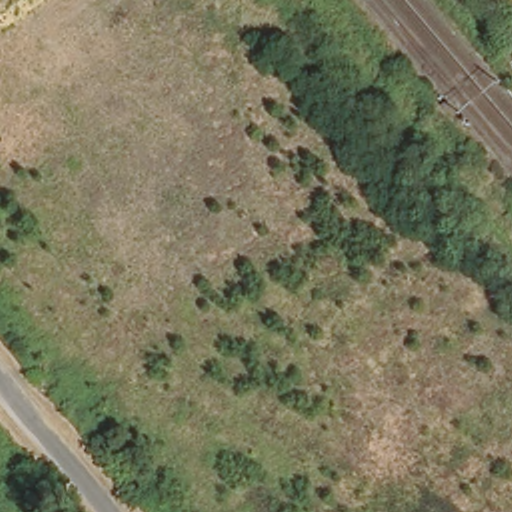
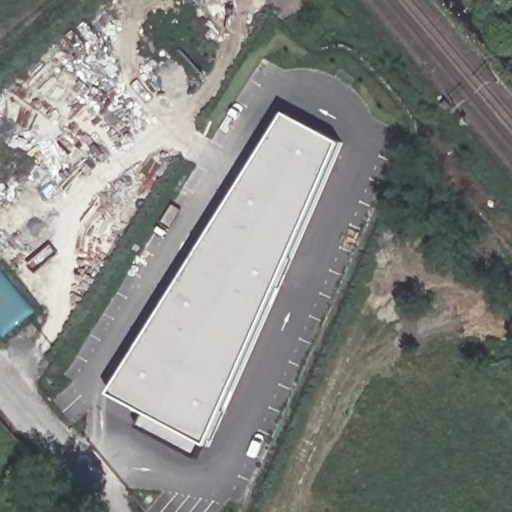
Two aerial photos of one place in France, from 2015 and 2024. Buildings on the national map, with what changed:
new [(207,447),(104,392),(283,111),(341,142),(207,447)]

